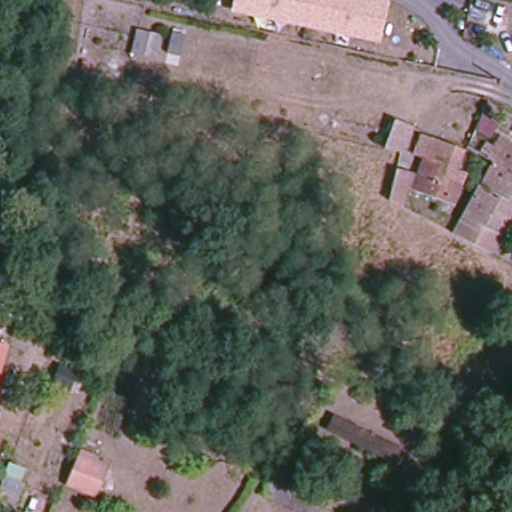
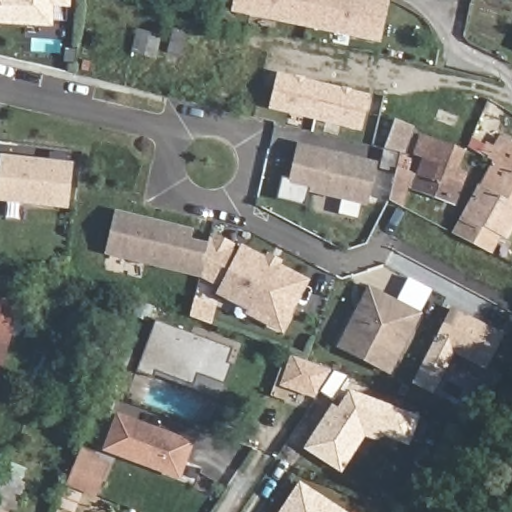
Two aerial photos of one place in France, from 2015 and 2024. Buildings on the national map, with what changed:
new [(53,8),(53,27),(0,24),(0,0),(71,0),(70,8),(53,8)]
unchanged [(231,11),(234,0),(388,0),(379,44),(231,11)]
unchanged [(173,32),(185,35),(177,67),(166,65),(173,32)]
unchanged [(134,48),(138,36),(149,39),(146,51),(134,48)]
unchanged [(81,70),(83,60),(91,62),(88,71),(81,70)]
new [(370,96),(362,131),(268,109),(276,74),(370,96)]
unchanged [(412,129),(403,154),(400,152),(386,150),(396,123),(412,129)]
unchanged [(424,156),(415,153),(421,136),(463,151),(456,171),(465,175),(454,204),(413,189),(424,156)]
unchanged [(493,161),(490,160),(489,159),(499,140),(512,146),(512,203),(479,186),(493,161)]
new [(367,205),(287,187),(296,144),(378,160),(367,205)]
new [(68,209),(0,202),(0,155),(73,161),(68,209)]
unchanged [(389,201),(396,171),(409,175),(402,208),(389,201)]
unchanged [(501,234),(500,235),(490,254),(453,235),(463,215),(479,186),(512,203),(512,227),(507,236),(501,234)]
new [(309,280),(282,333),(237,311),(240,307),(217,294),(221,288),(199,277),(105,255),(114,210),(192,229),(191,240),(206,243),(212,232),(234,245),(232,249),(238,251),(241,244),(265,257),(267,252),(282,260),(281,265),(309,280)]
new [(390,375),(336,347),(368,285),(422,313),(390,375)]
new [(489,373),(457,356),(437,394),(416,383),(436,345),(454,309),(507,335),(489,373)]
unchanged [(3,311),(0,326),(0,310),(3,311)]
new [(137,370),(156,322),(230,350),(226,362),(231,365),(219,397),(154,374),(153,377),(137,370)]
new [(332,399),(320,392),(314,398),(279,385),(291,356),(347,376),(332,399)]
unchanged [(59,366),(75,374),(69,388),(53,381),(59,366)]
new [(341,473),(303,449),(332,404),(337,406),(349,389),(420,417),(409,446),(382,435),(379,443),(364,437),(341,473)]
new [(179,480),(101,450),(115,412),(194,441),(179,480)]
unchanged [(106,465),(94,496),(66,484),(78,454),(106,465)]
unchanged [(4,477),(23,485),(12,512),(5,512),(0,510),(0,488),(4,477)]
new [(299,482),(345,512),(280,512),(299,482)]

